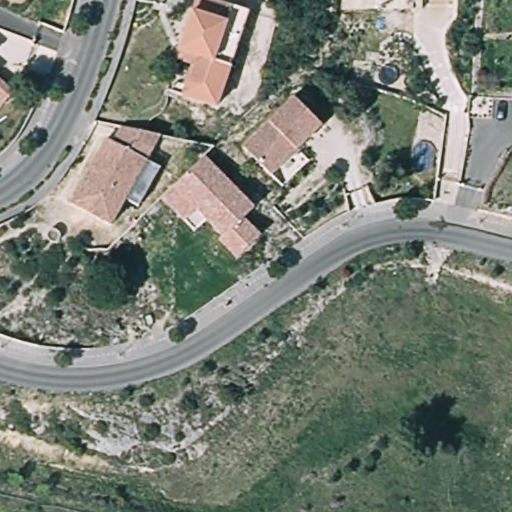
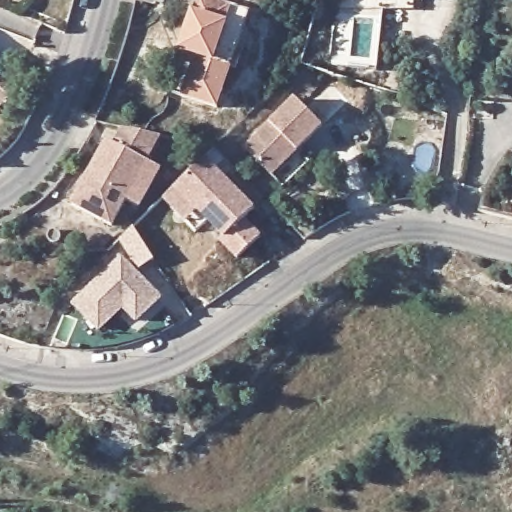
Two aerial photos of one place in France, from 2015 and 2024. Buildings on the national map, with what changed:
unchanged [(196,59),(178,53),(181,45),(197,0),(205,0),(247,14),(215,109),(191,101),(183,98),(196,59)]
unchanged [(296,99),(323,127),(272,176),(245,149),(296,99)]
unchanged [(136,125),(155,129),(143,155),(157,160),(139,202),(125,196),(113,223),(71,205),(101,136),(110,140),(118,121),(136,125)]
unchanged [(254,210),(224,238),(175,187),(204,158),(254,210)]
new [(134,228),(155,261),(138,270),(120,240),(134,228)]
new [(122,256),(163,299),(137,325),(123,312),(99,335),(71,305),(122,256)]

